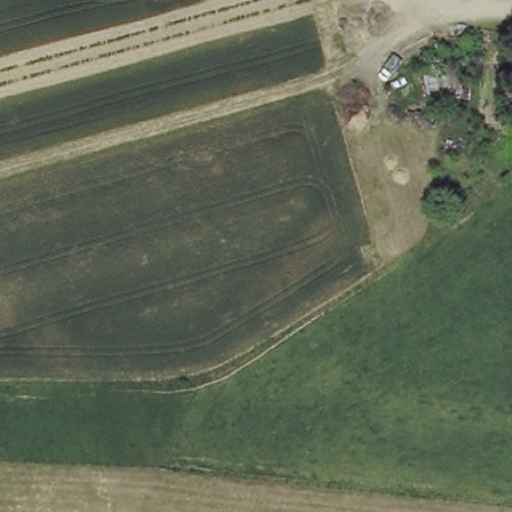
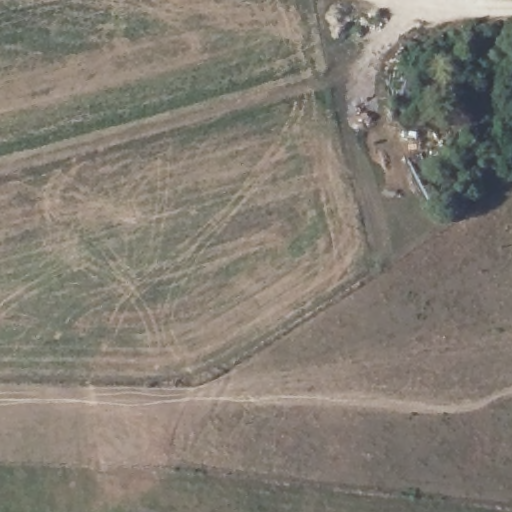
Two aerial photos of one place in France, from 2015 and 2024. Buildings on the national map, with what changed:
unchanged [(469,91),(433,99),(427,76),(462,69),(469,91)]

